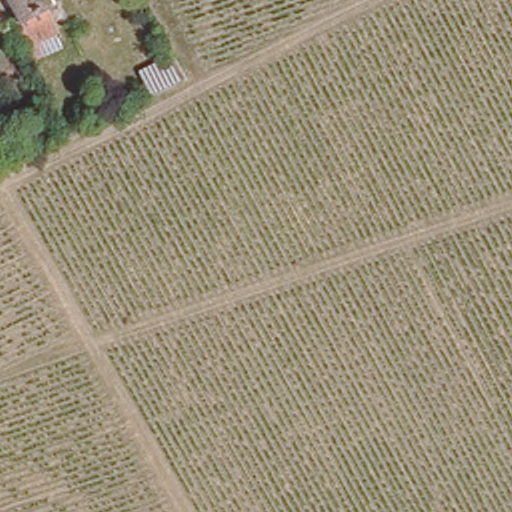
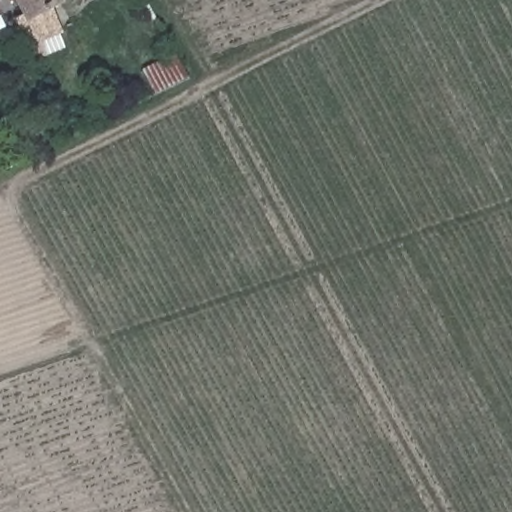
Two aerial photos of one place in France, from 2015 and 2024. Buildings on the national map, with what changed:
unchanged [(52,3),(63,27),(60,28),(66,43),(34,60),(12,13),(24,7),(20,0),(56,0),(52,3)]
unchanged [(171,52),(187,79),(151,95),(139,65),(171,52)]

